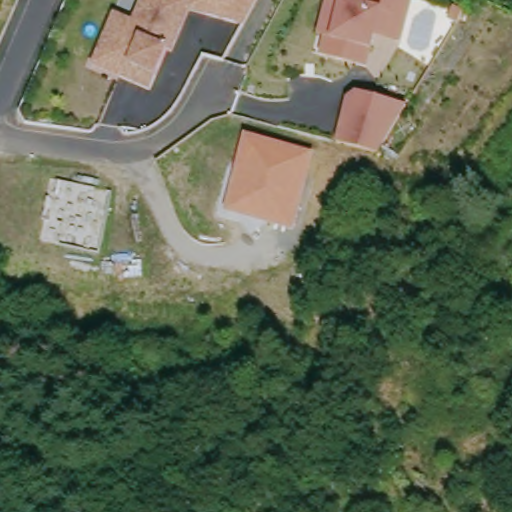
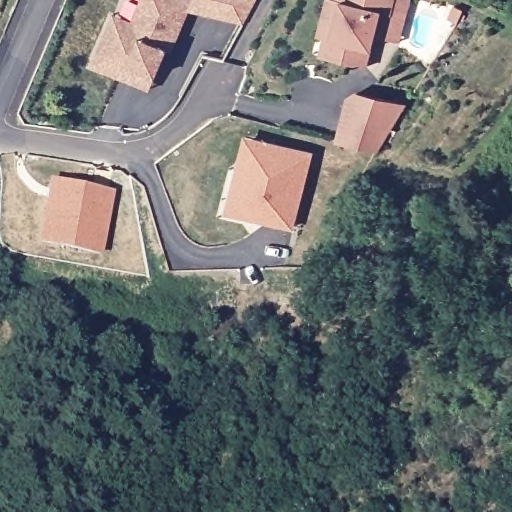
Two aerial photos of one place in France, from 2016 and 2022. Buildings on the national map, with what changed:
unchanged [(170,52),(166,50),(154,76),(125,64),(118,77),(90,65),(99,46),(113,14),(130,21),(139,0),(192,0),(170,52)]
unchanged [(200,13),(204,0),(257,0),(243,24),(200,13)]
unchanged [(326,57),(320,55),(325,37),(318,36),(323,16),(327,0),(393,0),(390,14),(380,12),(372,50),(367,68),(355,65),(326,57)]
unchanged [(348,99),(357,94),(403,105),(374,152),(337,143),(348,99)]
unchanged [(312,152),(293,230),(224,212),(245,134),(312,152)]
new [(48,178),(113,191),(102,256),(35,243),(48,178)]

